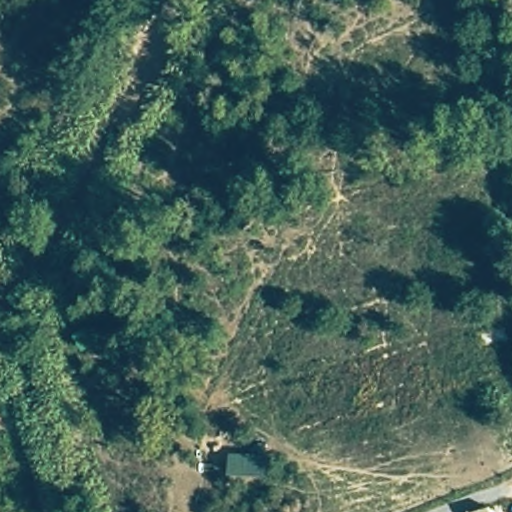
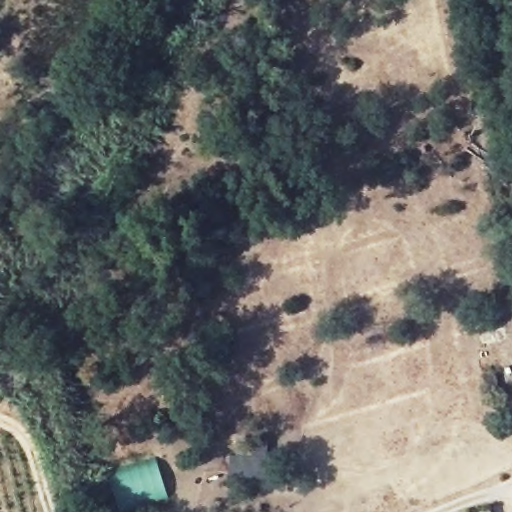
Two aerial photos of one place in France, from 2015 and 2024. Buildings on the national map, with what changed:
new [(165,486),(163,497),(121,510),(111,476),(150,463),(159,468),(165,486)]
unchanged [(490,507),(490,512),(471,512),(490,507)]

